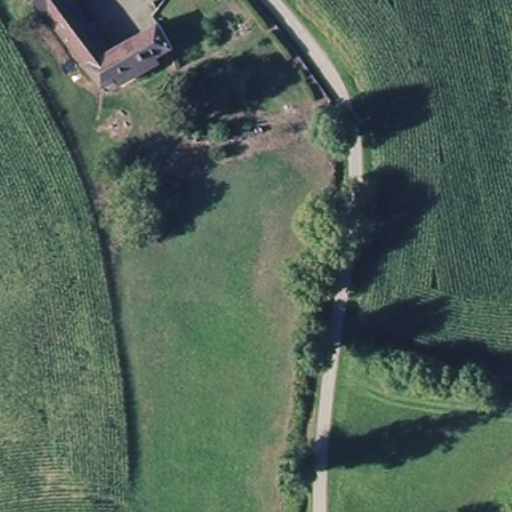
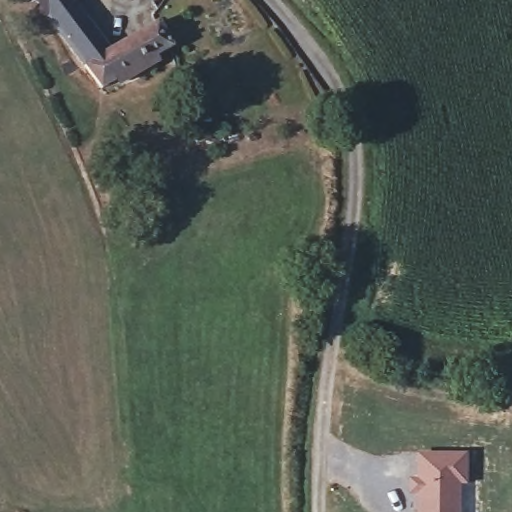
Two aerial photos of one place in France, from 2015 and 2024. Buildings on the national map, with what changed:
unchanged [(108,51),(162,28),(165,27),(179,58),(102,91),(32,0),(71,0),(68,1),(108,51)]
new [(415,453),(468,452),(468,485),(461,485),(461,512),(414,512),(415,453)]

